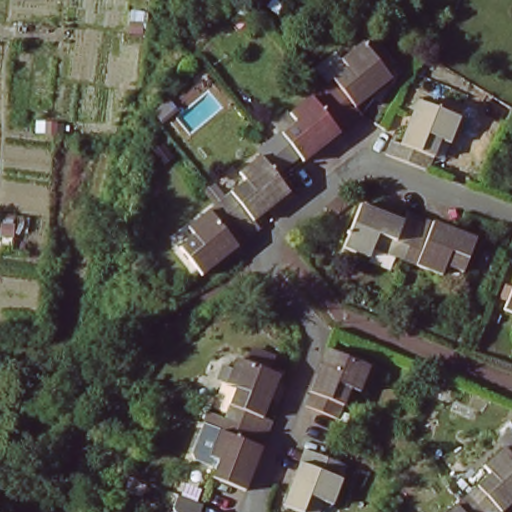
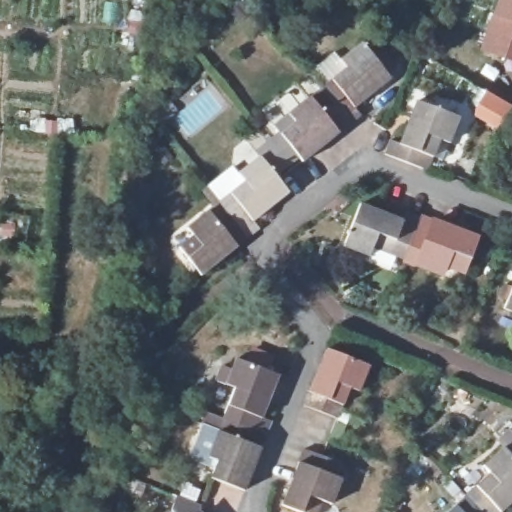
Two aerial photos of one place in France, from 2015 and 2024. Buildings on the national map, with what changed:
new [(480,47),(497,0),(512,0),(512,59),(480,47)]
unchanged [(341,116),(321,91),(344,72),(339,65),(360,48),(388,82),(375,92),(354,110),(358,115),(360,117),(349,126),(341,116)]
unchanged [(341,116),(349,126),(326,144),(301,165),(279,137),(301,120),(295,112),(321,91),(341,116)]
unchanged [(423,169),(382,152),(388,138),(397,142),(404,125),(408,116),(413,101),(456,117),(446,144),(436,140),(425,169),(423,169)]
unchanged [(219,200),(242,181),(237,174),(258,156),(277,180),(286,190),(278,197),(252,218),(259,226),(246,236),(219,200)]
unchanged [(198,275),(176,246),(191,235),(186,227),(219,200),(246,236),(198,275)]
unchanged [(401,257),(370,246),(367,255),(341,244),(359,202),(375,209),(400,218),(404,210),(418,215),(401,257)]
unchanged [(418,215),(454,230),(474,237),(460,270),(444,263),(440,272),(401,257),(418,215)]
unchanged [(504,305),(512,283),(512,308),(504,305)]
unchanged [(303,403),(308,391),(325,345),(367,362),(358,390),(347,385),(337,415),(303,403)]
unchanged [(233,388),(224,384),(233,360),(276,376),(261,416),(269,420),(265,432),(223,416),(233,388)]
unchanged [(244,490),(210,475),(216,459),(208,455),(223,416),(265,432),(244,490)]
unchanged [(472,480),(495,457),(487,449),(495,441),(512,459),(512,502),(505,508),(501,512),(457,512),(454,508),(477,486),(472,480)]
unchanged [(315,464),(340,473),(325,511),(315,508),(313,512),(276,512),(285,491),(297,456),(315,464)]
unchanged [(450,512),(454,508),(457,512),(450,512)]

